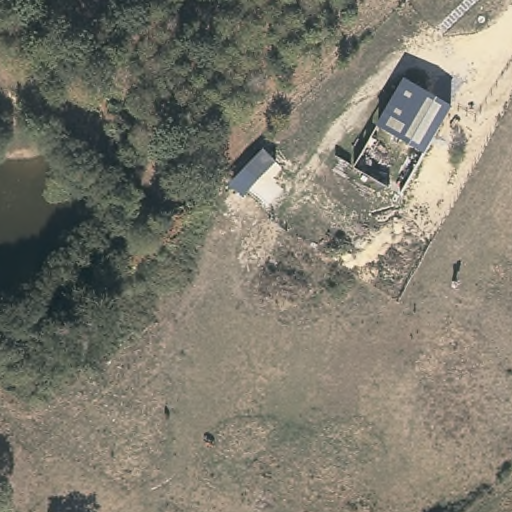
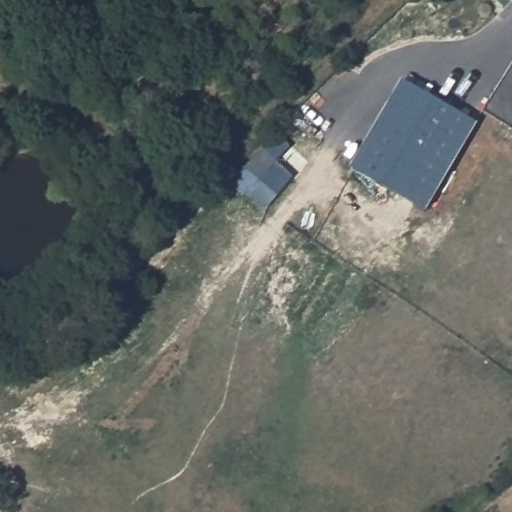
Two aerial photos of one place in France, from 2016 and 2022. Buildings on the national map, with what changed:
unchanged [(426,152),(378,125),(407,80),(454,106),(426,152)]
new [(427,210),(352,167),(378,125),(426,152),(454,106),(477,122),(427,210)]
demolished [(470,121),(435,188),(415,179),(448,115),(470,121)]
demolished [(368,135),(351,169),(333,159),(351,127),(368,135)]

